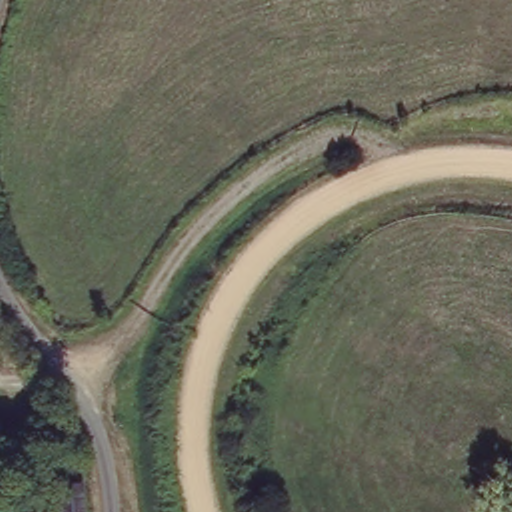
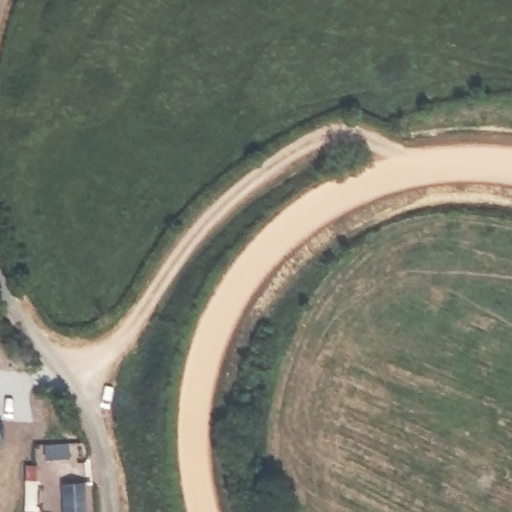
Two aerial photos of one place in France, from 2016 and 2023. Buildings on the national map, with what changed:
unchanged [(1,447),(0,447),(0,416),(6,417),(1,447)]
unchanged [(80,512),(57,512),(54,490),(76,487),(80,512)]

